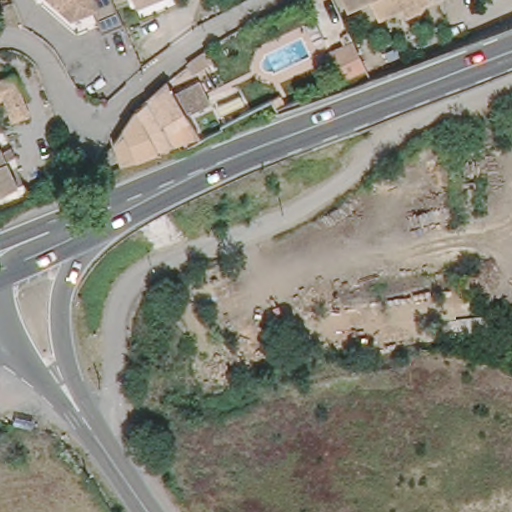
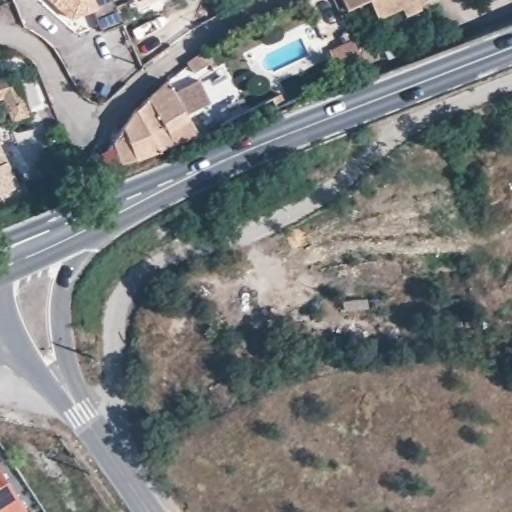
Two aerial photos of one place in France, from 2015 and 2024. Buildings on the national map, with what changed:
unchanged [(121,18),(100,27),(90,5),(69,15),(58,6),(51,0),(113,0),(121,18)]
unchanged [(135,0),(152,0),(137,6),(135,0)]
unchanged [(371,8),(367,0),(391,0),(371,8)]
unchanged [(402,7),(398,0),(412,0),(402,7)]
unchanged [(329,47),(356,35),(369,64),(346,76),(329,47)]
unchanged [(178,87),(171,78),(174,75),(181,70),(189,67),(196,78),(178,87)]
unchanged [(28,113),(13,119),(3,96),(0,97),(0,78),(13,73),(28,113)]
unchanged [(176,143),(162,148),(133,111),(166,82),(174,94),(193,84),(194,83),(208,110),(193,119),(202,133),(176,143)]
unchanged [(162,148),(108,169),(101,158),(133,111),(162,148)]
unchanged [(0,141),(9,159),(16,157),(24,174),(0,184),(0,141)]
new [(23,512),(0,512),(0,471),(25,510),(23,512)]

